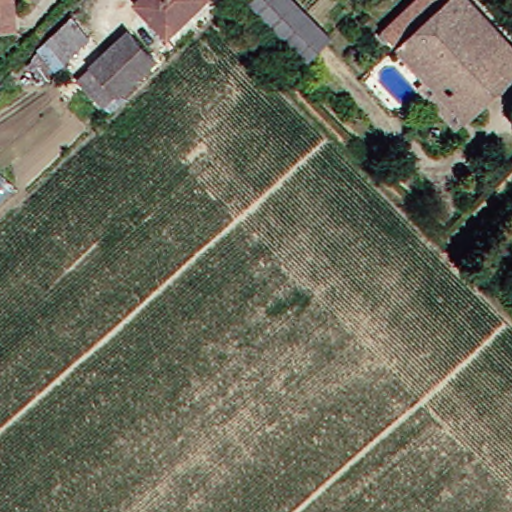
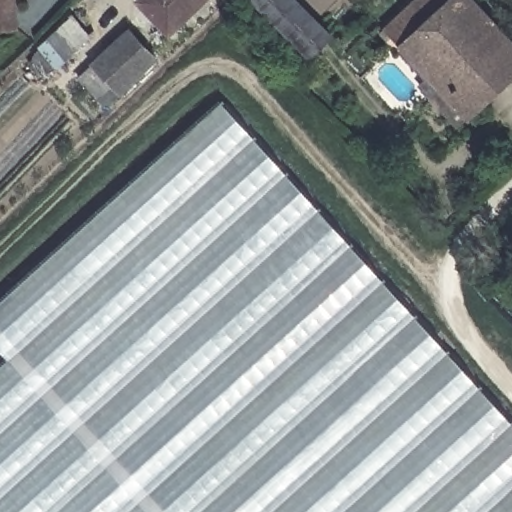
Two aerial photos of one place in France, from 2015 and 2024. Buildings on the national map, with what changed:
unchanged [(0,11),(0,0),(4,0),(4,10),(0,11)]
unchanged [(199,0),(143,53),(120,29),(139,11),(133,5),(138,0),(199,0)]
unchanged [(284,0),(319,35),(298,55),(243,0),(284,0)]
unchanged [(468,99),(472,104),(456,117),(373,26),(402,0),(462,0),(500,41),(478,61),(492,76),(468,99)]
unchanged [(36,45),(67,17),(83,36),(52,63),(36,45)]
unchanged [(74,82),(89,68),(122,37),(147,64),(114,95),(112,93),(97,107),(74,82)]
new [(0,371),(9,362),(0,352),(0,307),(223,105),(512,424),(512,512),(0,512),(0,371)]

